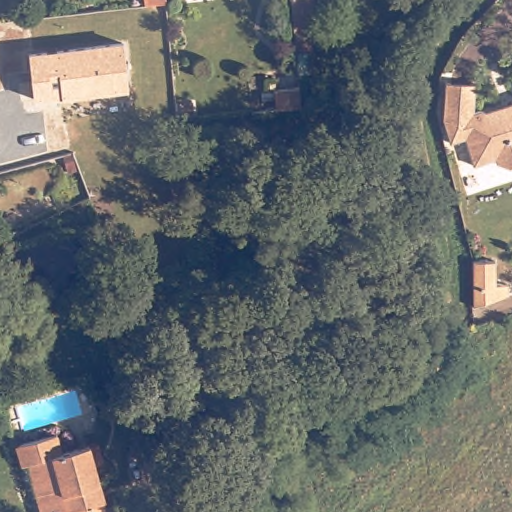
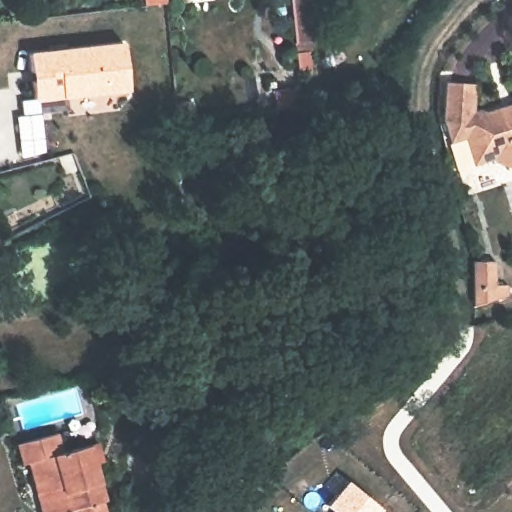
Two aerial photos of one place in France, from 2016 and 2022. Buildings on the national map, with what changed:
unchanged [(144,0),(166,0),(169,23),(147,24),(144,0)]
unchanged [(312,35),(309,36),(309,46),(295,46),(290,0),(309,0),(312,35)]
unchanged [(122,41),(129,90),(34,102),(28,51),(122,41)]
unchanged [(492,161),(491,153),(485,154),(467,160),(460,133),(444,137),(438,116),(441,76),(473,78),(471,111),(480,108),(509,98),(512,97),(512,165),(502,167),(492,161)]
unchanged [(4,233),(12,252),(0,257),(0,235),(4,233)]
unchanged [(499,262),(498,286),(510,286),(510,292),(475,303),(476,261),(499,262)]
unchanged [(68,455),(95,448),(110,506),(106,506),(108,512),(48,512),(35,464),(27,465),(22,446),(63,435),(68,455)]
new [(347,482),(380,508),(377,512),(334,512),(326,506),(347,482)]

